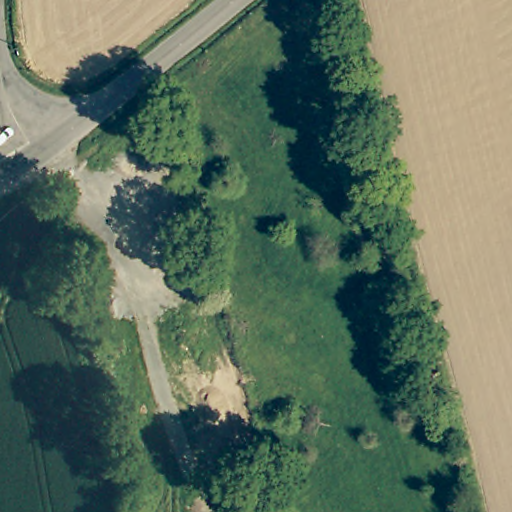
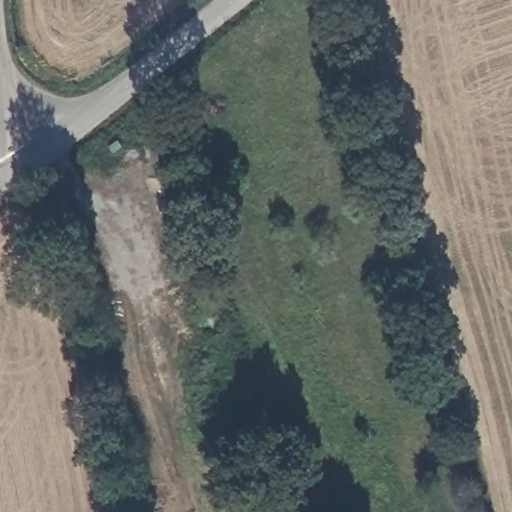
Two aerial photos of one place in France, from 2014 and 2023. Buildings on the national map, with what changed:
[]

